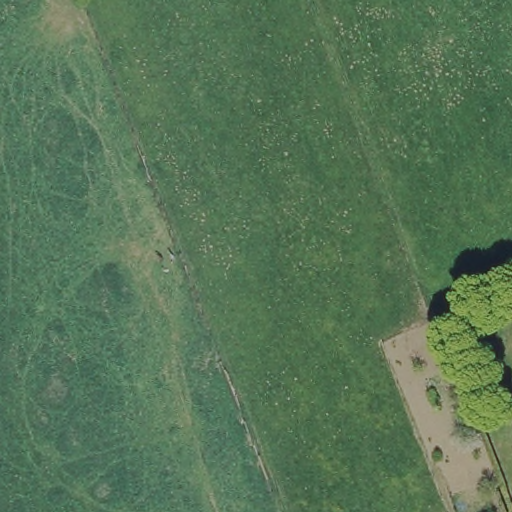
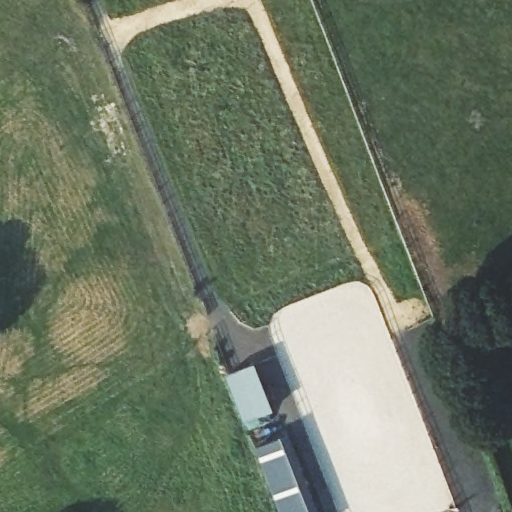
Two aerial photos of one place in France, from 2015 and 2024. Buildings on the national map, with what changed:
new [(273,410),(245,418),(228,372),(257,362),(273,410)]
new [(281,512),(257,447),(285,436),(314,512),(281,512)]

